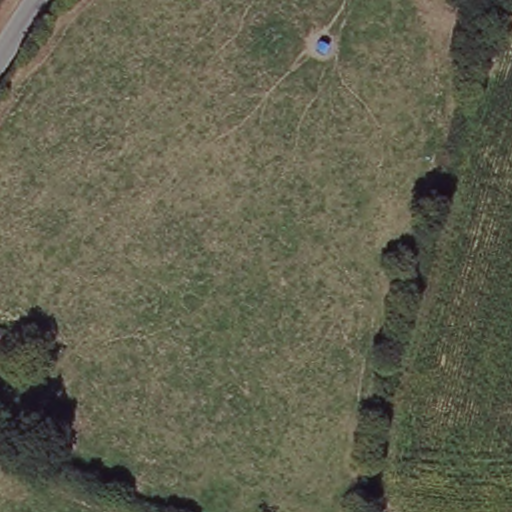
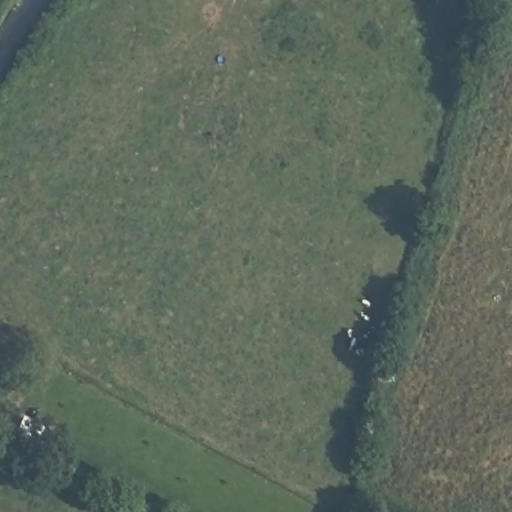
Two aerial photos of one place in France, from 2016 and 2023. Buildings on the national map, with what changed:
[]

